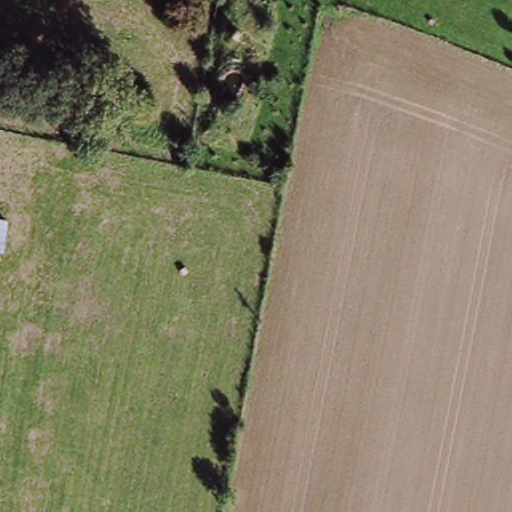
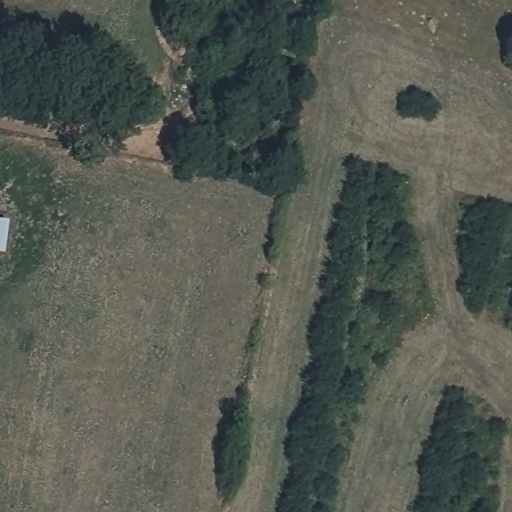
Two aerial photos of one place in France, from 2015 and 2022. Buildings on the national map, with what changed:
unchanged [(11,222),(5,256),(0,255),(0,220),(11,222)]

